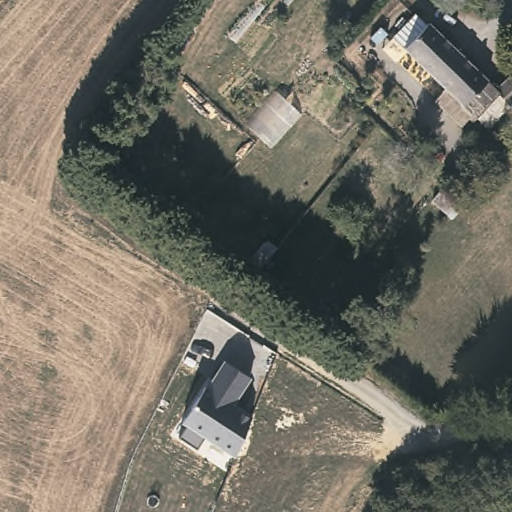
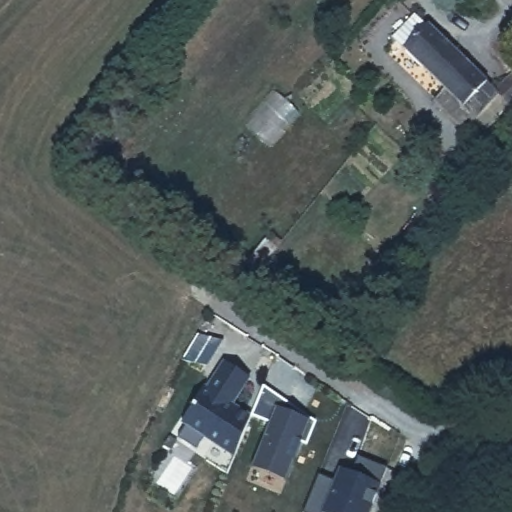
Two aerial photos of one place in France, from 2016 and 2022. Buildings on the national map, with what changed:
unchanged [(511,100),(489,124),(476,112),(472,116),(469,114),(462,121),(436,94),(446,84),(404,43),(392,31),(414,7),(428,20),(431,16),(497,82),(512,68),(512,101),(511,100)]
unchanged [(507,59),(512,54),(512,65),(507,59)]
demolished [(442,228),(457,237),(447,255),(429,243),(442,228)]
unchanged [(284,240),(258,273),(244,262),(270,230),(284,240)]
unchanged [(250,378),(234,402),(252,414),(235,457),(204,437),(197,447),(179,436),(187,425),(182,423),(223,360),(250,378)]
new [(264,386),(317,421),(307,442),(300,441),(287,479),(252,464),(269,420),(252,414),(264,386)]
new [(375,482),(382,485),(370,512),(302,512),(301,511),(317,474),(334,480),(339,466),(349,470),(357,455),(384,465),(375,482)]

